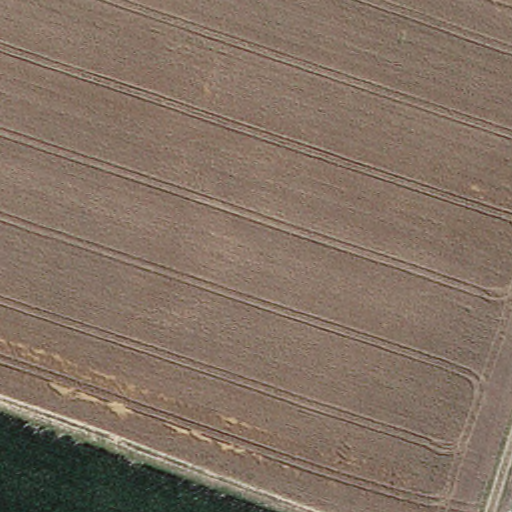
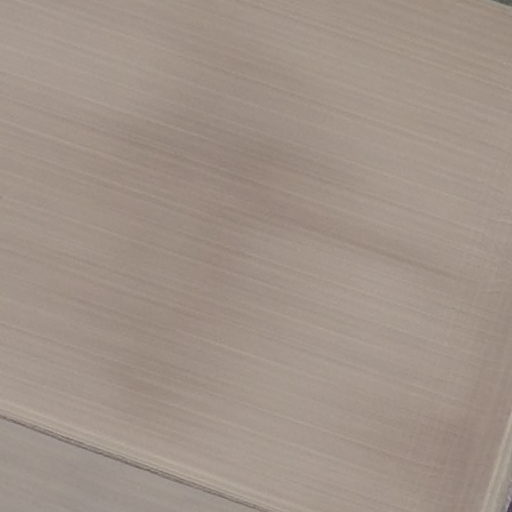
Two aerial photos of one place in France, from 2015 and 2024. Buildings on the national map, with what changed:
[]

